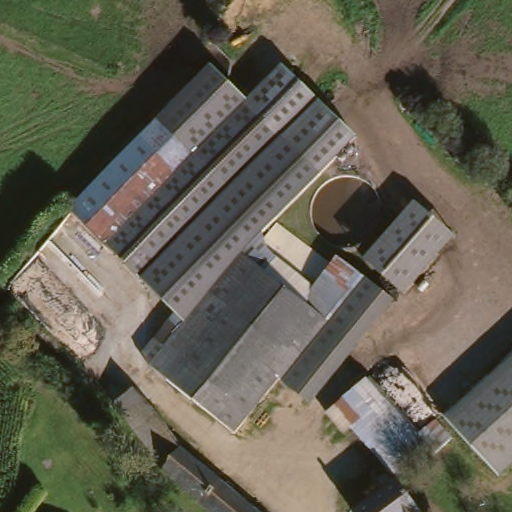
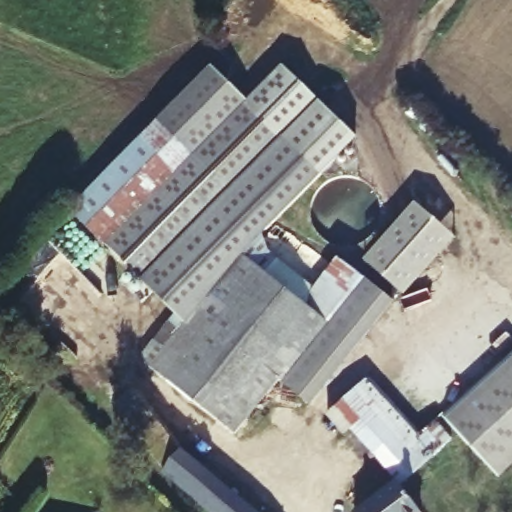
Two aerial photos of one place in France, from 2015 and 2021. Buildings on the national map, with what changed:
unchanged [(209,64),(247,100),(323,173),(257,242),(312,284),(334,255),(394,304),(309,405),(283,383),(242,436),(150,364),(164,347),(154,336),(168,322),(178,330),(187,321),(69,210),(209,64)]
unchanged [(247,100),(282,68),(358,143),(323,173),(247,100)]
unchanged [(362,263),(413,207),(455,243),(403,301),(362,263)]
unchanged [(512,359),(512,463),(499,475),(448,422),(512,359)]
unchanged [(432,460),(402,484),(339,408),(351,398),(366,385),(420,447),(432,460)]
unchanged [(178,449),(164,467),(124,424),(112,412),(129,396),(138,404),(178,449)]
unchanged [(252,512),(204,512),(159,473),(164,467),(178,449),(252,512)]
unchanged [(411,512),(353,512),(393,486),(411,512)]

